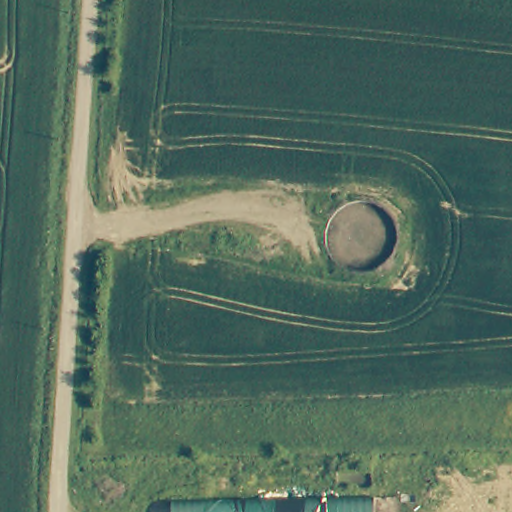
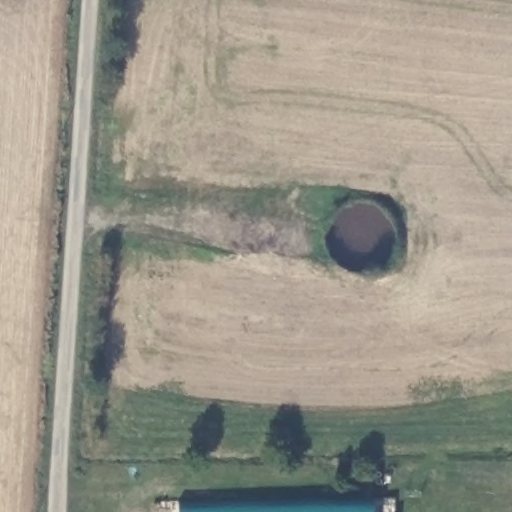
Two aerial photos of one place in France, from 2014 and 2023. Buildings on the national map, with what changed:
unchanged [(376,493),(376,512),(175,512),(175,496),(376,493)]

